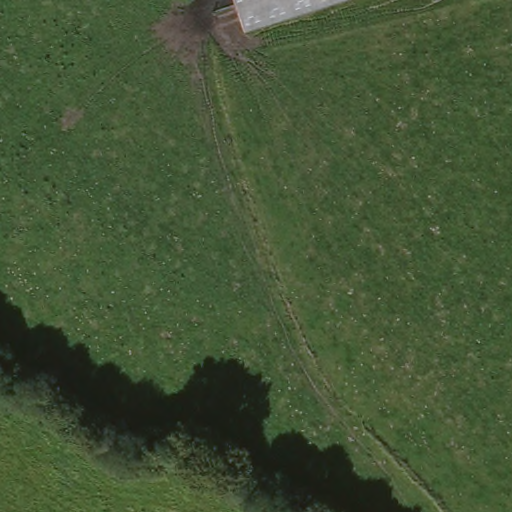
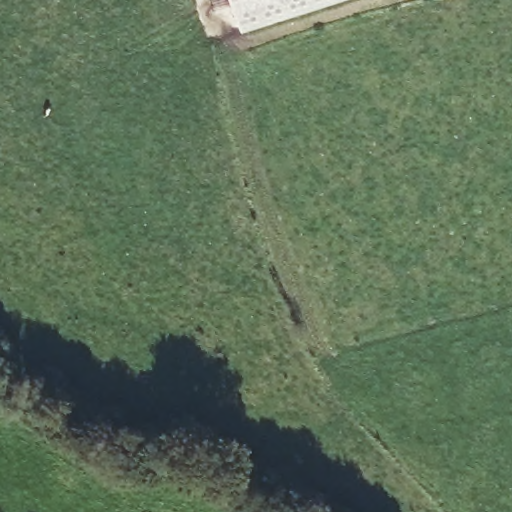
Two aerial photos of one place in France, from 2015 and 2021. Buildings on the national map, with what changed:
unchanged [(234,0),(328,0),(245,30),(234,0)]

